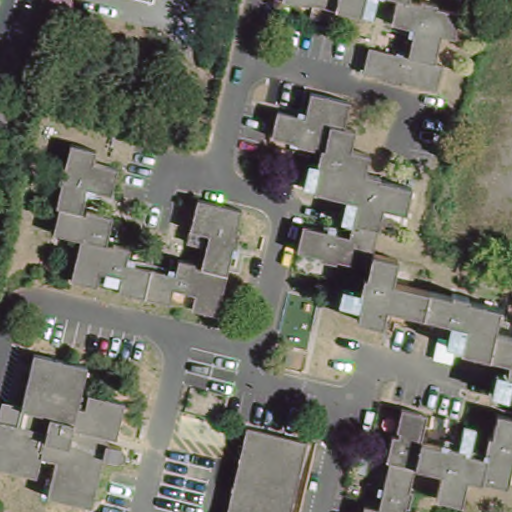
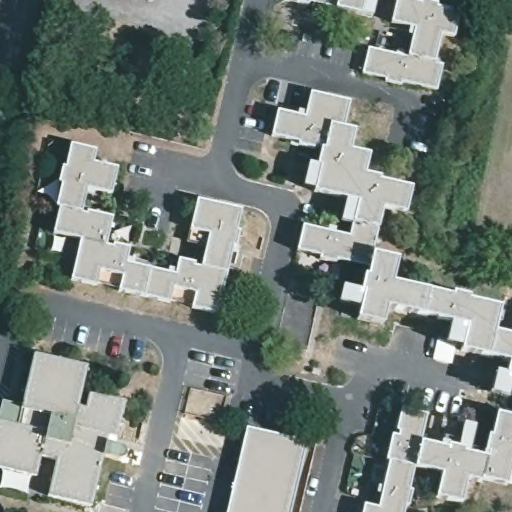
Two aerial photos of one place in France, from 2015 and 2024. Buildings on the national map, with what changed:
unchanged [(305,3),(304,5),(282,0),(340,0),(337,10),(305,3)]
unchanged [(337,10),(340,0),(362,0),(358,16),(337,10)]
unchanged [(414,28),(389,21),(395,0),(404,0),(406,0),(419,3),(421,0),(435,4),(434,7),(458,12),(453,37),(439,34),(434,59),(408,52),(414,28)]
unchanged [(442,61),(434,86),(401,78),(399,82),(383,78),(384,74),(361,69),(368,42),(408,52),(434,59),(442,61)]
unchanged [(329,147),(327,146),(319,144),(318,148),(304,144),(304,140),(278,133),(284,110),(307,116),(313,92),(351,102),(346,126),(335,124),(329,147)]
unchanged [(346,126),(357,129),(353,150),(371,154),(366,173),(364,178),(349,175),(341,201),(319,196),(327,164),(324,163),(327,146),(329,147),(335,124),(346,126)]
unchanged [(70,144),(96,151),(93,162),(118,168),(110,195),(86,189),(80,213),(58,207),(61,185),(58,183),(62,168),(65,168),(70,144)]
unchanged [(358,205),(341,201),(349,175),(364,178),(366,173),(379,176),(379,179),(412,187),(404,216),(381,210),(376,232),(353,226),(358,205)]
unchanged [(184,244),(195,202),(236,212),(231,230),(234,230),(231,246),(228,245),(221,275),(196,268),(201,249),(184,244)]
unchanged [(58,207),(80,213),(88,215),(88,211),(113,218),(106,247),(80,240),(52,234),(58,207)]
unchanged [(339,262),(338,266),(321,261),(322,258),(301,252),(307,228),(350,238),(353,226),(376,232),(371,254),(368,269),(339,262)]
unchanged [(80,240),(106,247),(114,249),(115,246),(131,250),(128,265),(149,270),(142,297),(116,291),(116,289),(94,284),(93,286),(70,280),(80,240)]
unchanged [(384,307),(380,325),(356,319),(363,289),(358,288),(361,275),(366,276),(368,269),(371,254),(396,260),(390,281),(427,290),(420,316),(384,307)]
unchanged [(169,275),(173,260),(191,264),(190,267),(196,268),(221,275),(213,313),(188,307),(188,305),(167,300),(166,303),(142,297),(149,270),(169,275)]
unchanged [(457,350),(463,327),(420,316),(427,290),(448,296),(449,292),(464,297),(464,300),(496,308),(490,331),(483,356),(457,350)]
unchanged [(504,372),(506,362),(483,356),(490,331),(512,336),(512,374),(504,372)]
unchanged [(112,444),(110,452),(128,456),(129,458),(129,461),(128,463),(126,465),(124,465),(108,461),(94,510),(52,498),(61,463),(46,460),(40,478),(0,467),(0,424),(1,420),(24,427),(29,411),(24,409),(38,355),(89,368),(80,408),(88,411),(92,394),(129,405),(119,446),(112,444)]
unchanged [(394,460),(391,459),(396,441),(400,441),(401,436),(397,435),(403,413),(429,420),(423,441),(417,466),(394,460)]
unchanged [(511,458),(504,483),(482,478),(486,458),(488,452),(482,450),(486,435),(491,435),(496,413),(512,418),(512,458),(511,458)]
unchanged [(311,438),(293,512),(229,512),(250,423),(311,438)]
unchanged [(449,448),(450,445),(466,449),(466,452),(486,458),(482,478),(481,481),(471,479),(464,501),(440,495),(446,473),(419,466),(417,466),(423,441),(449,448)]
unchanged [(414,507),(411,506),(409,512),(369,512),(371,504),(383,507),(394,460),(417,466),(419,466),(414,490),(418,492),(414,507)]

